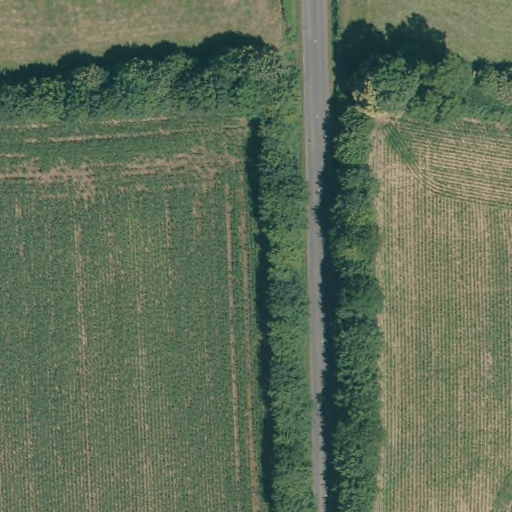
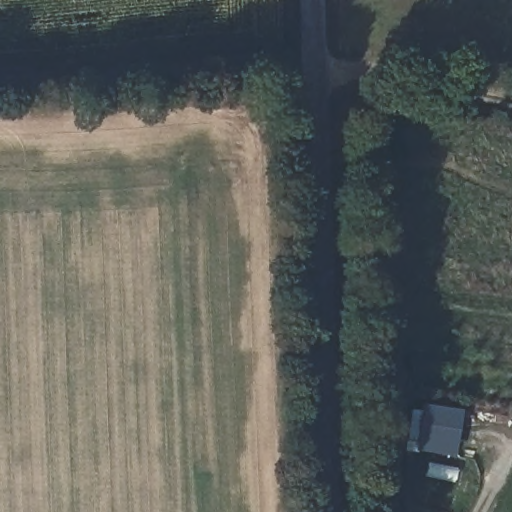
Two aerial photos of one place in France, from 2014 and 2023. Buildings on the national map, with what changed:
new [(461,410),(453,456),(417,451),(417,452),(403,450),(409,408),(420,410),(421,403),(461,410)]

